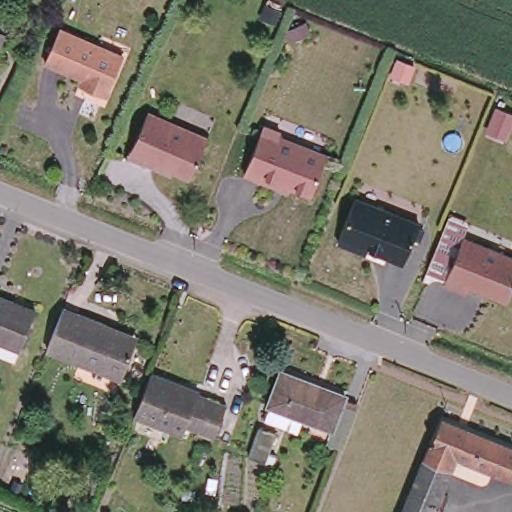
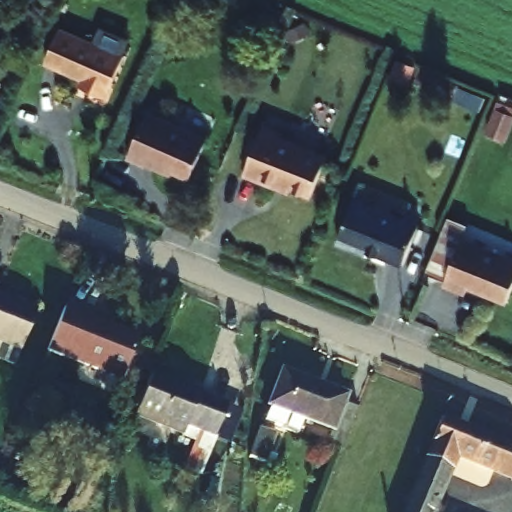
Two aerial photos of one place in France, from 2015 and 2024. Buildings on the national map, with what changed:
unchanged [(127,50),(108,94),(88,85),(92,76),(48,58),(62,24),(127,50)]
unchanged [(5,34),(0,46),(0,31),(5,34)]
unchanged [(202,142),(185,182),(142,163),(140,167),(123,160),(143,115),(202,142)]
unchanged [(276,135),(274,140),(322,160),(307,199),(275,186),(273,190),(239,177),(259,129),(276,135)]
unchanged [(414,229),(398,267),(355,250),(354,254),(332,245),(350,202),(414,229)]
unchanged [(512,275),(500,305),(462,289),(459,296),(438,287),(457,241),(512,264),(512,275)]
unchanged [(18,353),(0,346),(0,294),(35,307),(18,353)]
unchanged [(112,325),(110,330),(141,342),(128,378),(51,348),(67,307),(112,325)]
unchanged [(320,430),(327,416),(300,405),(293,419),(265,406),(270,393),(265,391),(278,360),(339,386),(337,389),(353,396),(337,437),(320,430)]
unchanged [(228,400),(215,432),(187,420),(185,428),(137,409),(142,396),(152,368),(228,400)]
unchanged [(281,423),(272,452),(253,446),(262,417),(281,423)]
unchanged [(512,449),(512,466),(508,476),(450,453),(426,512),(398,512),(436,418),(512,449)]

